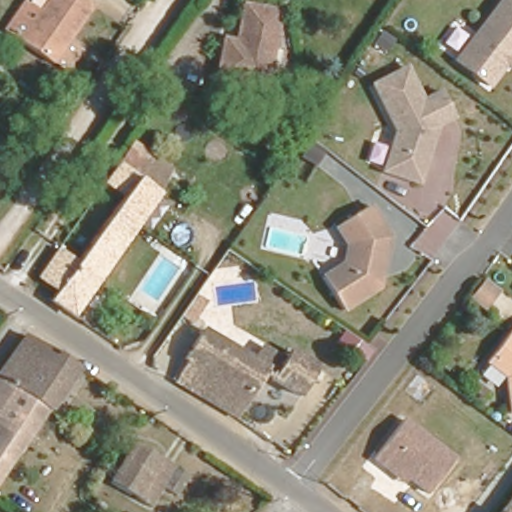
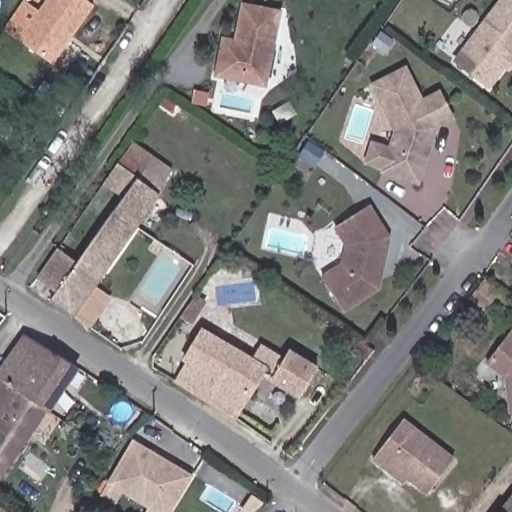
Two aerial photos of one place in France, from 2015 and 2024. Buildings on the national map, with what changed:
unchanged [(67,70),(56,61),(54,64),(20,41),(20,39),(5,29),(24,1),(40,12),(49,0),(86,0),(94,5),(71,39),(82,47),(67,70)]
unchanged [(506,65),(490,85),(458,61),(478,34),(505,0),(512,0),(512,66),(511,68),(506,65)]
unchanged [(218,75),(224,39),(237,40),(244,4),(280,10),(267,83),(218,75)]
unchanged [(415,182),(378,170),(392,131),(368,85),(402,69),(418,101),(436,93),(449,119),(432,128),(429,136),(424,151),(415,182)]
unchanged [(172,175),(71,320),(47,304),(54,293),(35,280),(53,253),(72,267),(137,175),(117,161),(129,145),(172,175)]
unchanged [(377,291),(342,313),(322,280),(342,266),(347,247),(336,229),(369,208),(390,241),(386,255),(380,280),(377,291)]
unchanged [(484,281),(497,291),(485,306),(472,297),(484,281)]
unchanged [(488,360),(512,329),(512,407),(508,375),(488,360)]
unchanged [(313,365),(295,396),(259,372),(234,417),(197,395),(209,375),(184,361),(201,330),(248,357),(255,345),(281,359),(287,348),(313,365)]
unchanged [(17,345),(25,332),(78,366),(70,378),(50,407),(0,376),(0,370),(17,345)]
unchanged [(50,407),(0,481),(0,376),(50,407)]
unchanged [(387,465),(375,456),(405,417),(455,456),(429,490),(410,475),(406,480),(387,465)]
unchanged [(144,450),(185,473),(173,494),(160,486),(148,505),(105,479),(126,445),(144,450)]
unchanged [(512,512),(501,512),(512,498),(512,512)]

